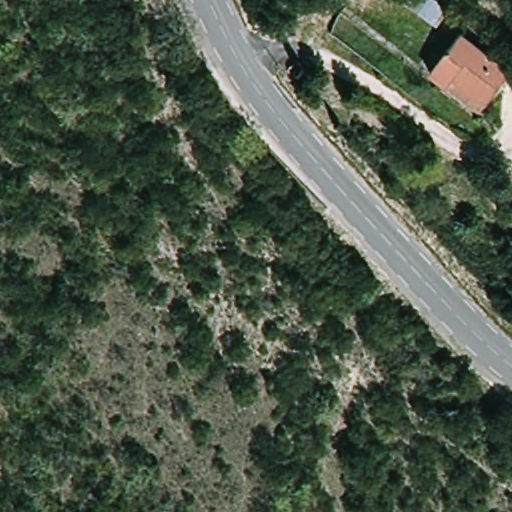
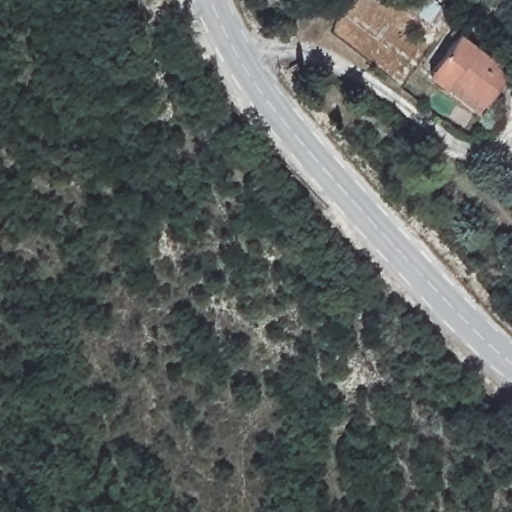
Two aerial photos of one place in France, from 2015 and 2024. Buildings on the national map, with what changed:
unchanged [(455,88),(431,67),(467,26),(512,67),(512,79),(491,103),(483,113),(455,88)]

